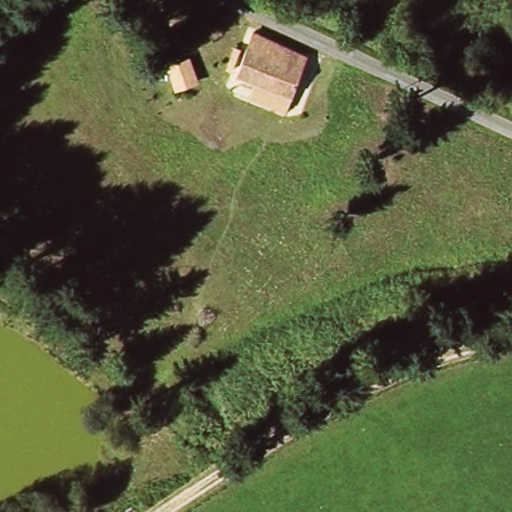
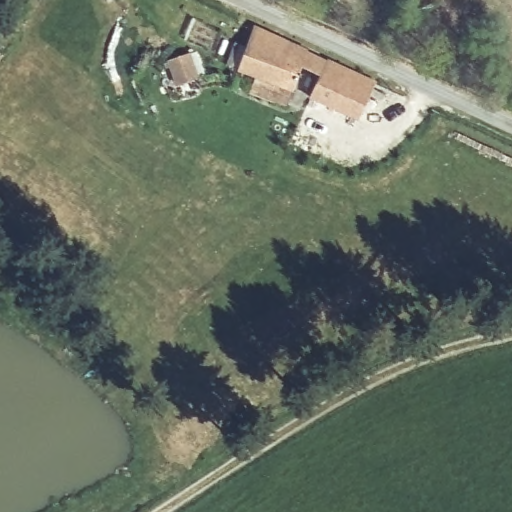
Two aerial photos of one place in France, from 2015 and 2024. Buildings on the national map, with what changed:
unchanged [(282,94),(299,59),(254,36),(258,29),(306,50),(286,108),(248,94),(254,80),(282,94)]
unchanged [(299,59),(282,94),(236,71),(247,51),(254,36),(299,59)]
new [(326,61),(328,59),(376,82),(357,124),(308,99),(316,84),(318,78),(299,69),(306,50),(326,61)]
unchanged [(198,81),(174,88),(166,59),(189,53),(198,81)]

